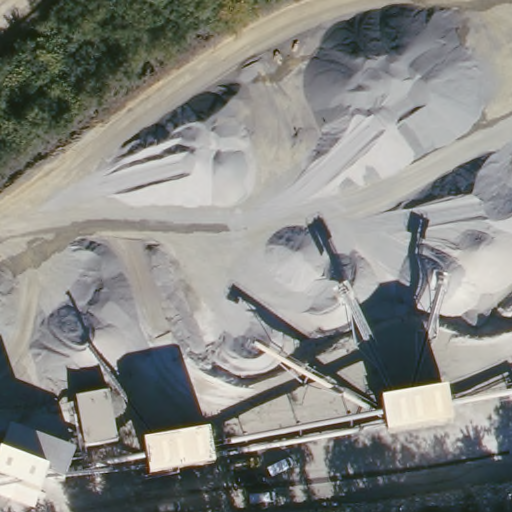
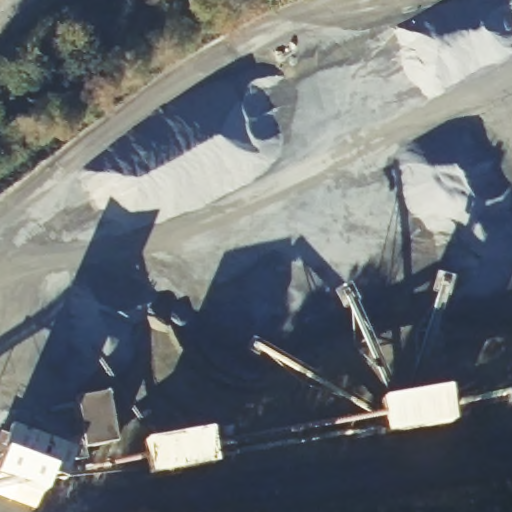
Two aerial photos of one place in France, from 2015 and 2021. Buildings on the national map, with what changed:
unchanged [(379,403),(450,388),(457,421),(386,434),(379,403)]
unchanged [(81,398),(113,391),(120,435),(88,440),(81,398)]
unchanged [(139,440),(215,425),(220,463),(145,476),(139,440)]
unchanged [(10,426),(81,448),(64,487),(54,480),(46,497),(0,478),(0,453),(10,426)]

